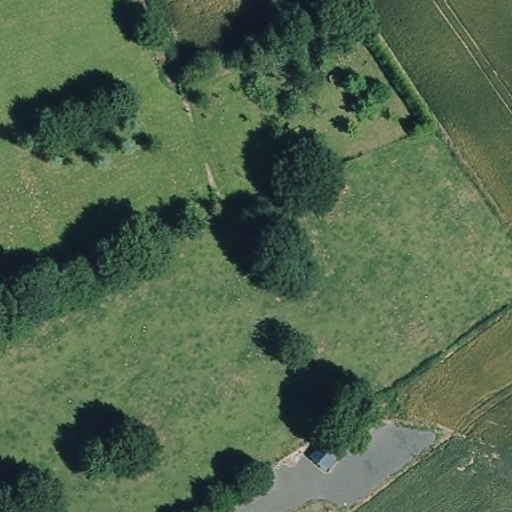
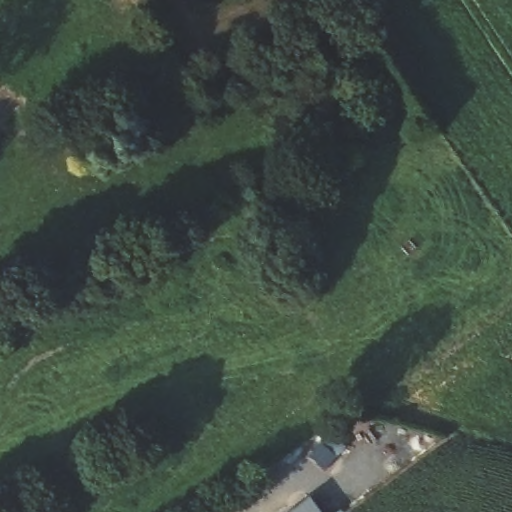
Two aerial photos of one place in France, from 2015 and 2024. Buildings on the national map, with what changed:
unchanged [(328,450),(341,463),(331,474),(317,461),(328,450)]
new [(320,512),(296,512),(312,500),(320,512)]

